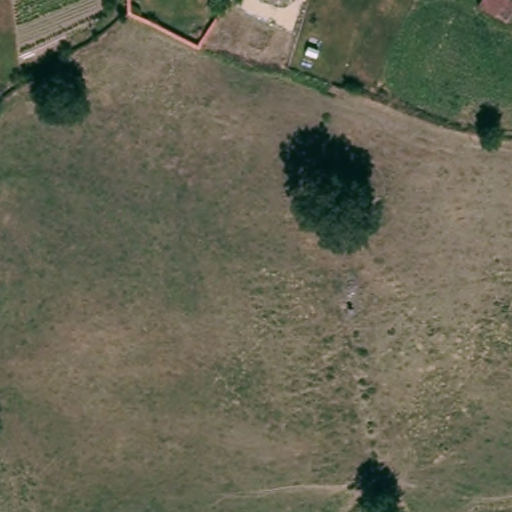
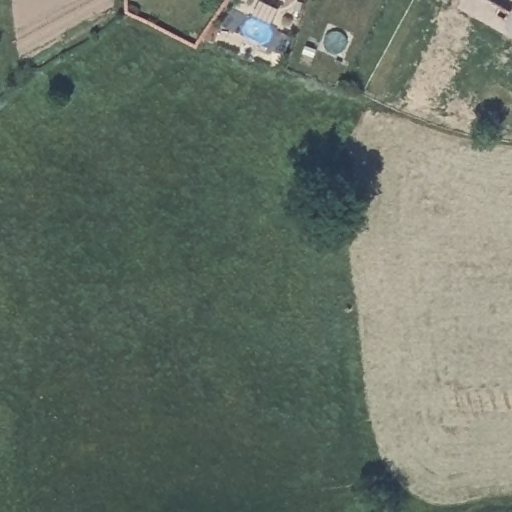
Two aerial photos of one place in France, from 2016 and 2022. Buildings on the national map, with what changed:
unchanged [(512,17),(509,22),(481,5),(484,0),(512,0),(512,17)]

